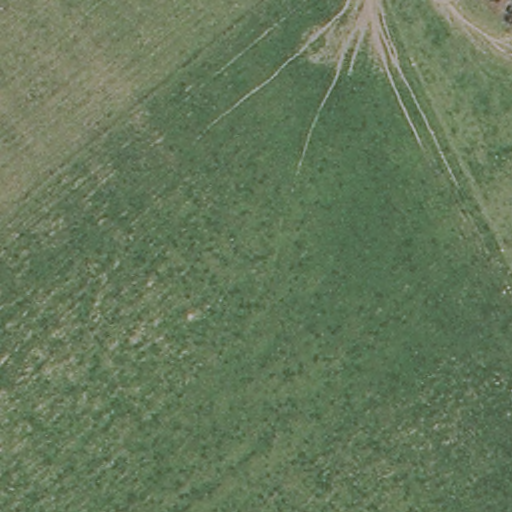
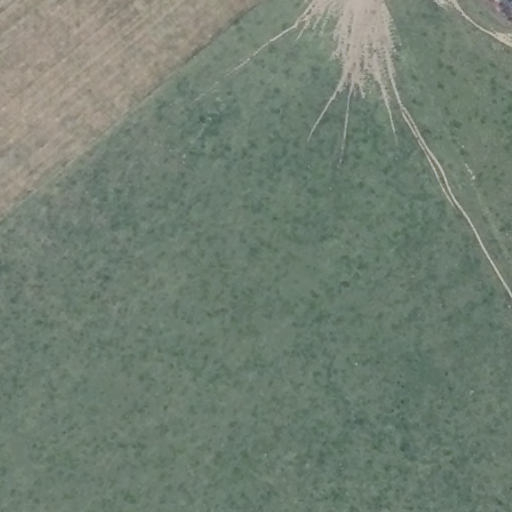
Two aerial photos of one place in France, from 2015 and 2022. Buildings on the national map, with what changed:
[]

